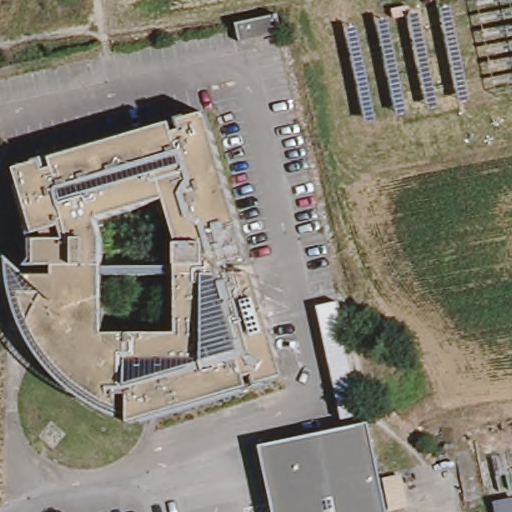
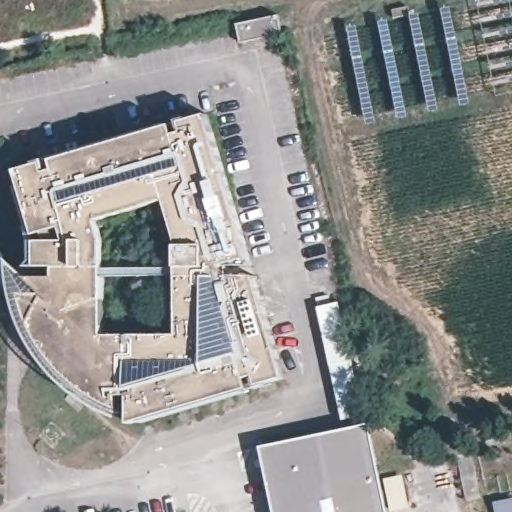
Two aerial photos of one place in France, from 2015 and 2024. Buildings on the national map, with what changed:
unchanged [(277,13),(282,36),(275,37),(237,46),(232,23),(270,15),(277,13)]
unchanged [(42,162),(45,172),(53,170),(51,160),(171,125),(174,134),(183,131),(181,123),(208,115),(252,266),(230,266),(229,275),(255,276),(284,378),(258,385),(256,376),(246,379),(248,388),(129,423),(129,395),(118,395),(119,418),(101,411),(79,397),(63,384),(48,368),(31,345),(22,325),(15,305),(9,281),(8,258),(28,277),(54,278),(54,267),(36,267),(36,240),(65,240),(61,228),(34,235),(16,170),(42,162)]
unchanged [(339,422),(318,317),(344,313),(366,416),(339,422)]
unchanged [(352,468),(344,429),(369,423),(387,512),(274,512),(269,485),(352,468)]
unchanged [(352,468),(269,485),(262,445),(344,429),(352,468)]

